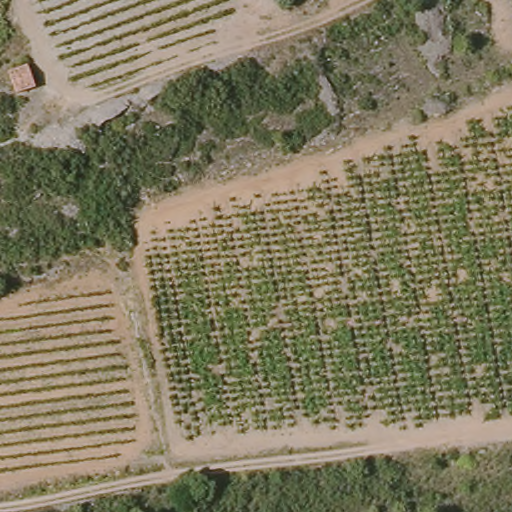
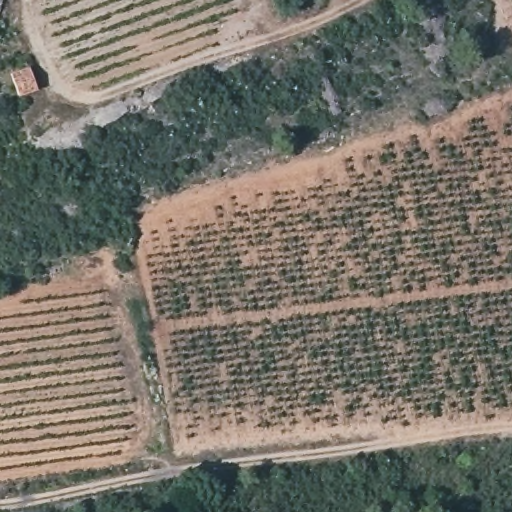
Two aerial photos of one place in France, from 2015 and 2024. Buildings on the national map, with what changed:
unchanged [(31,82),(10,89),(5,69),(25,62),(31,82)]

